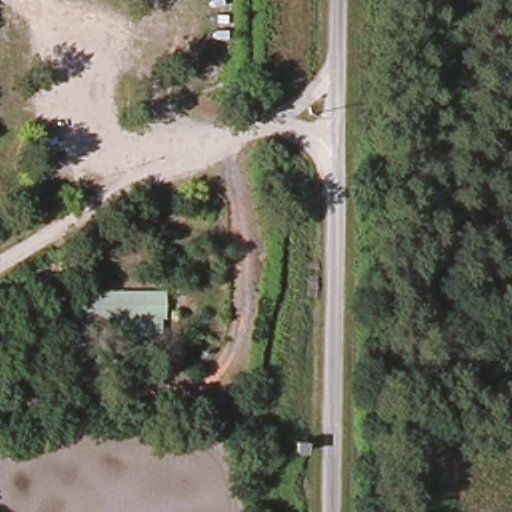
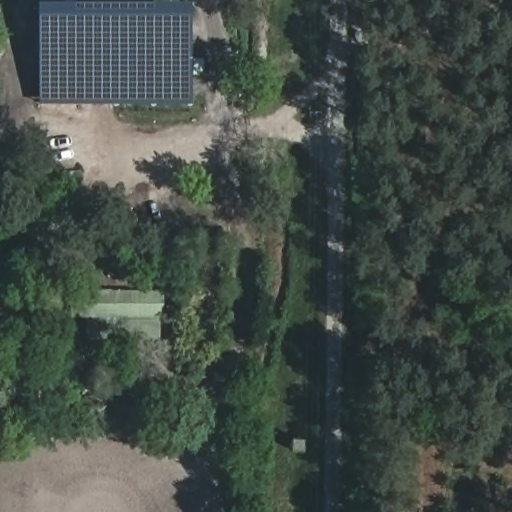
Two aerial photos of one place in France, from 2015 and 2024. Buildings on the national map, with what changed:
new [(40,104),(40,5),(191,4),(192,103),(40,104)]
unchanged [(163,329),(80,328),(81,292),(166,290),(163,329)]

